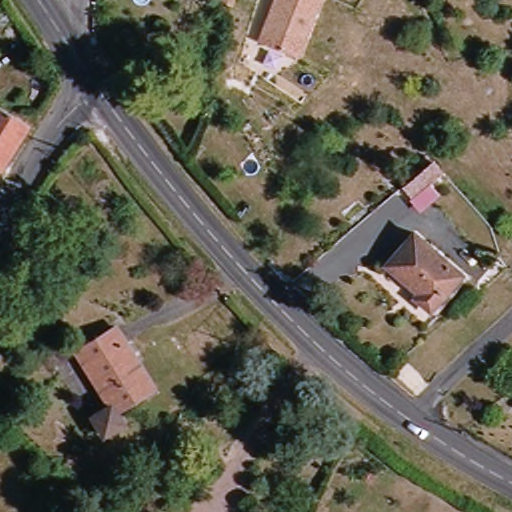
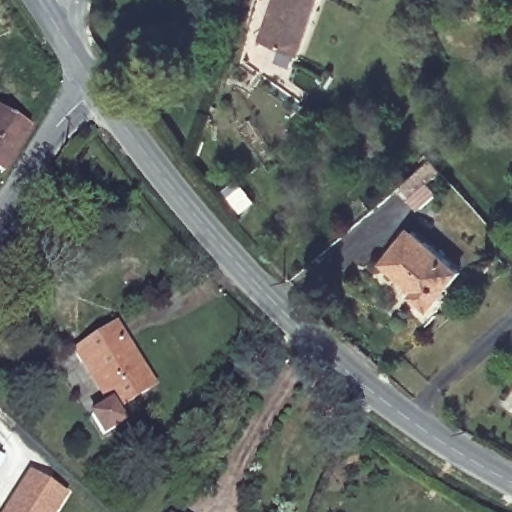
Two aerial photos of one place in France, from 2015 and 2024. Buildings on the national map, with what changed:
unchanged [(274,0),(323,0),(301,56),(259,41),(274,0)]
unchanged [(6,171),(0,167),(0,105),(35,127),(6,171)]
unchanged [(445,175),(415,203),(399,188),(431,160),(445,175)]
unchanged [(396,266),(423,233),(471,274),(443,307),(396,266)]
unchanged [(101,411),(117,399),(91,347),(130,326),(161,388),(123,408),(131,422),(112,433),(101,411)]
unchanged [(0,333),(9,338),(1,351),(0,350),(0,333)]
new [(63,493),(51,512),(3,512),(29,472),(63,493)]

